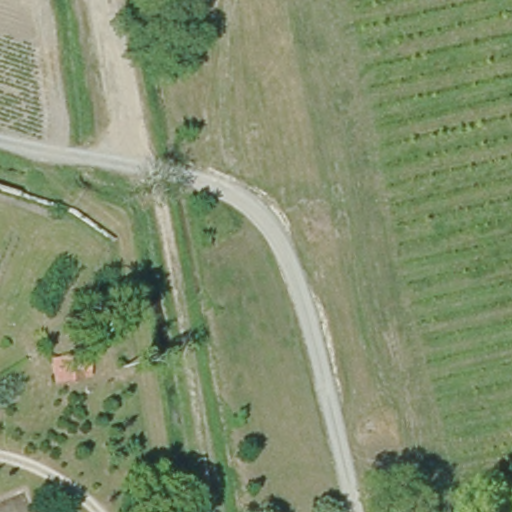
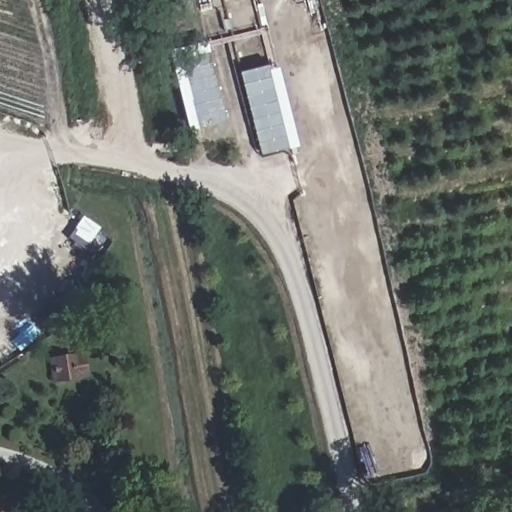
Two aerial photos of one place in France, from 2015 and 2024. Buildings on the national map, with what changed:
demolished [(104,6),(84,9),(83,0),(103,0),(104,6)]
new [(170,50),(209,40),(227,120),(189,129),(170,50)]
new [(279,65),(299,144),(262,153),(240,70),(273,62),(274,66),(279,65)]
unchanged [(83,349),(84,369),(59,370),(59,349),(83,349)]

